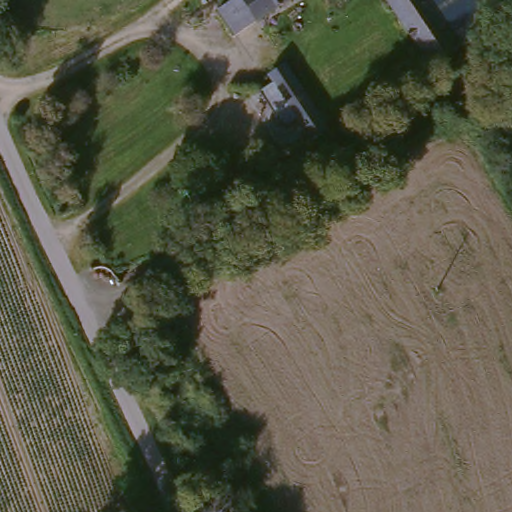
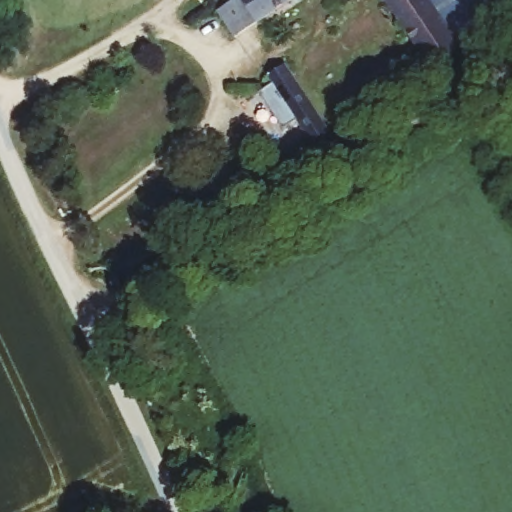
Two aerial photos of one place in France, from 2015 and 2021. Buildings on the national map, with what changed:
unchanged [(229,2),(232,0),(289,0),(249,33),(229,2)]
unchanged [(436,64),(392,0),(437,0),(466,43),(436,64)]
unchanged [(334,128),(316,139),(274,72),(291,61),(334,128)]

